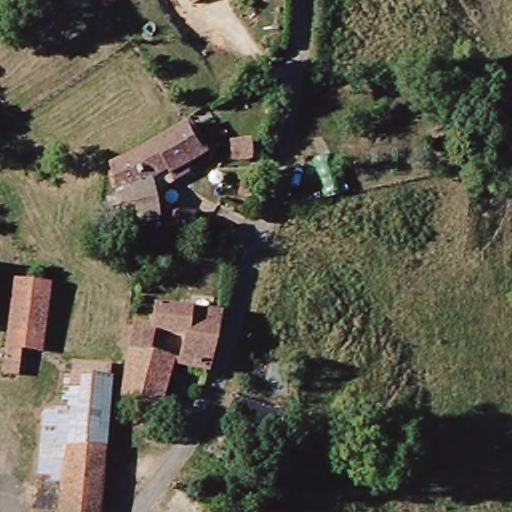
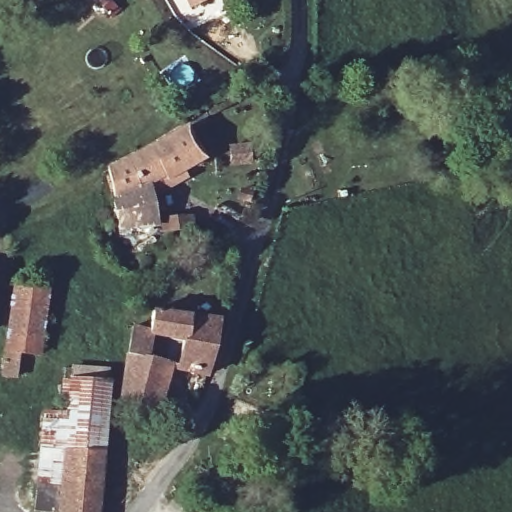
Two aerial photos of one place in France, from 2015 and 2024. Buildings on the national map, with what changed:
unchanged [(204,0),(201,1),(200,0),(204,0)]
unchanged [(119,197),(113,167),(194,130),(209,162),(175,177),(170,174),(155,181),(163,223),(128,233),(119,197)]
unchanged [(194,228),(175,230),(170,219),(191,214),(213,220),(208,232),(194,228)]
unchanged [(32,352),(29,368),(11,366),(22,285),(54,288),(47,352),(32,352)]
unchanged [(186,310),(227,319),(213,370),(189,364),(195,338),(155,329),(161,304),(186,310)]
unchanged [(155,329),(149,355),(178,364),(163,406),(132,394),(139,327),(155,329)]
unchanged [(117,379),(104,512),(65,512),(66,507),(42,504),(52,408),(75,410),(78,374),(117,379)]
unchanged [(210,484),(203,496),(187,486),(194,474),(210,484)]

